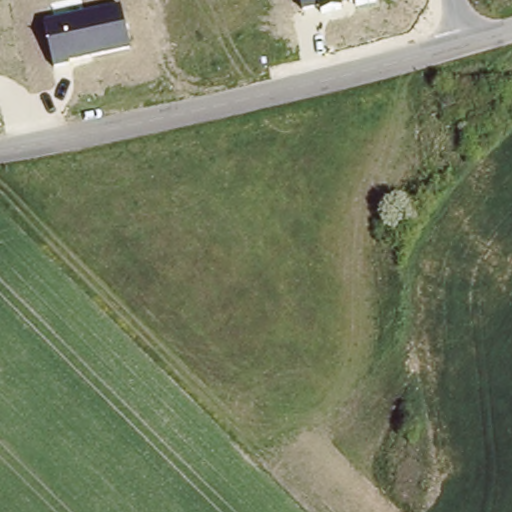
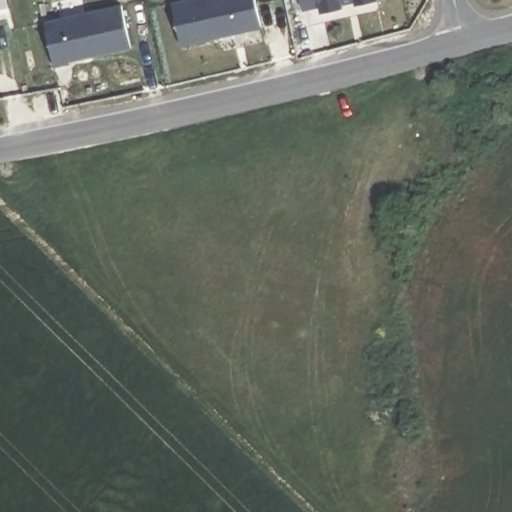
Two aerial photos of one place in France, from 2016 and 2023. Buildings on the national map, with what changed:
new [(253,0),(258,30),(180,46),(171,3),(183,0),(253,0)]
unchanged [(375,0),(376,5),(357,10),(355,1),(342,5),(342,11),(320,16),(318,6),(303,10),(301,0),(375,0)]
unchanged [(43,23),(122,3),(130,48),(53,66),(43,23)]

